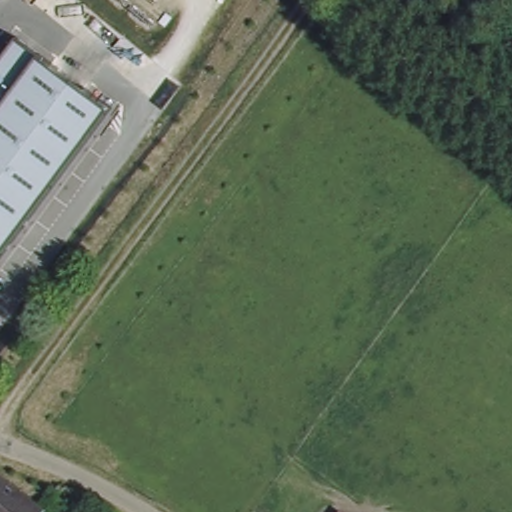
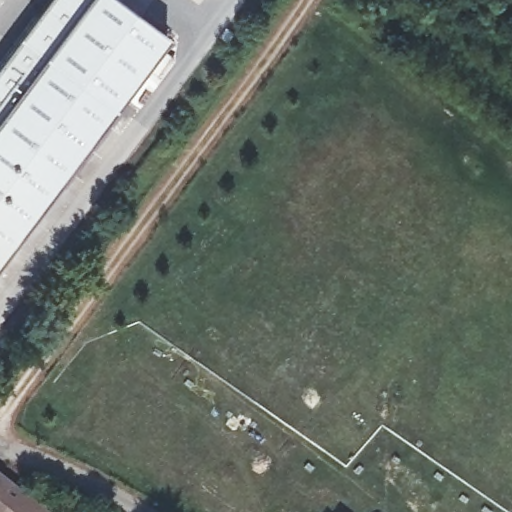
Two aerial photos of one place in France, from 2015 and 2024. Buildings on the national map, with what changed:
new [(16,39),(44,0),(116,0),(164,36),(108,107),(40,56),(16,39)]
unchanged [(108,107),(0,254),(0,60),(16,39),(40,56),(108,107)]
unchanged [(0,472),(46,508),(43,512),(0,512),(0,472)]

